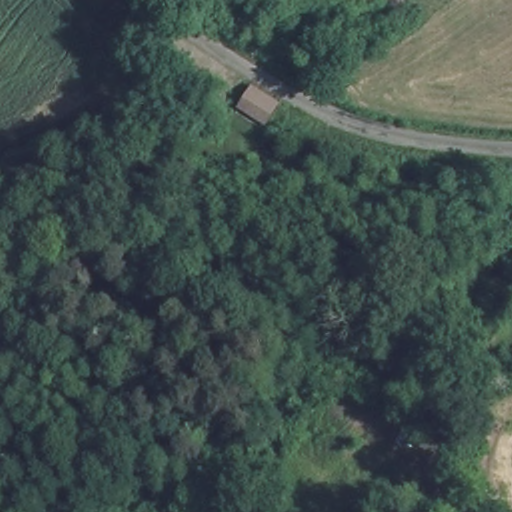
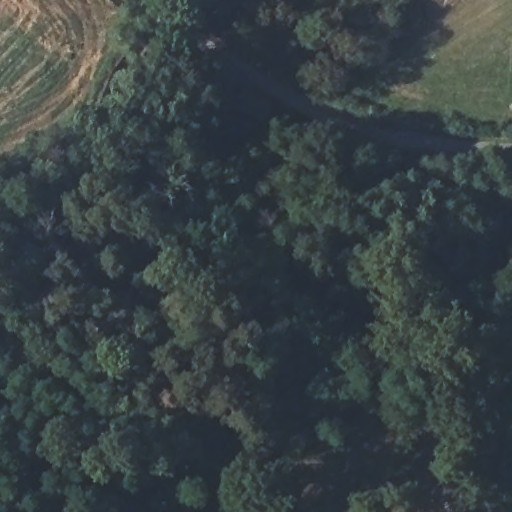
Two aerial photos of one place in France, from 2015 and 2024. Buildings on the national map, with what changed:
unchanged [(261,121),(295,133),(288,148),(253,134),(261,121)]

